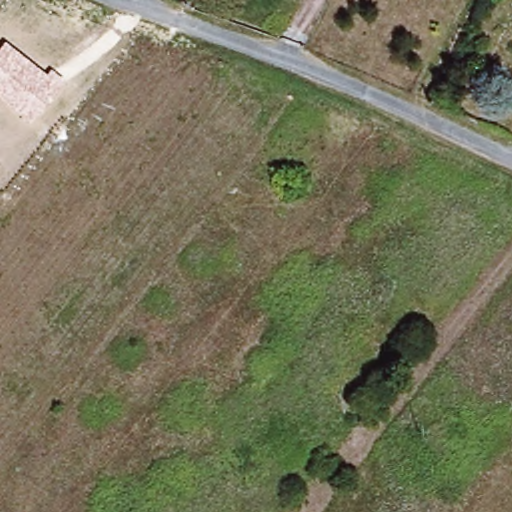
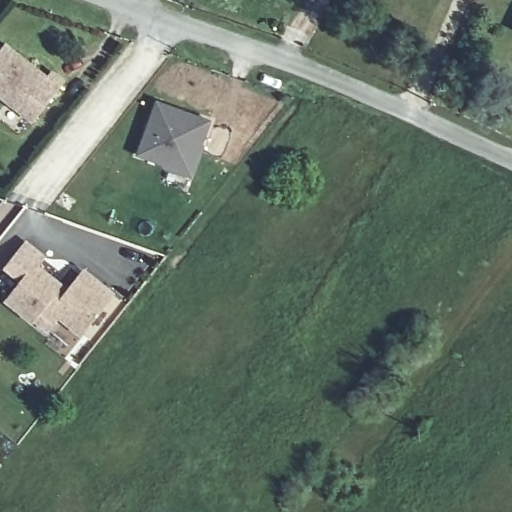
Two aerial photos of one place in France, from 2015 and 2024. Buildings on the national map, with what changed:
unchanged [(50,70),(64,81),(30,124),(0,98),(0,51),(6,44),(46,75),(50,70)]
new [(155,103),(208,122),(189,175),(136,155),(155,103)]
new [(33,323),(31,325),(7,305),(23,285),(6,272),(26,247),(43,261),(36,270),(68,296),(84,276),(111,300),(79,338),(59,322),(48,335),(33,323)]

